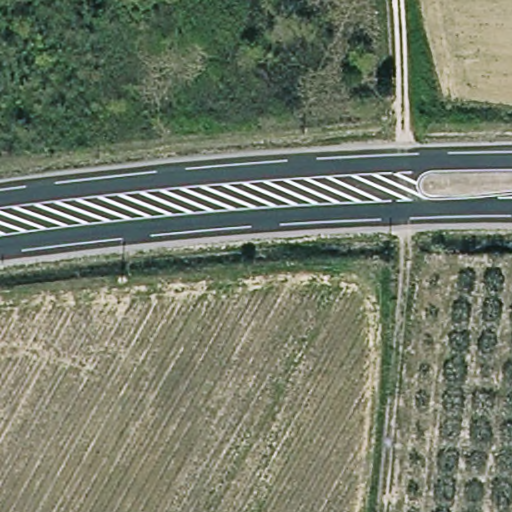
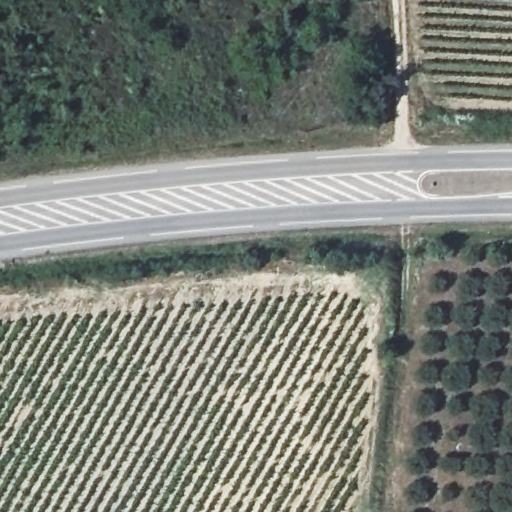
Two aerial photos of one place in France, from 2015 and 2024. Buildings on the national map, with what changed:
[]

